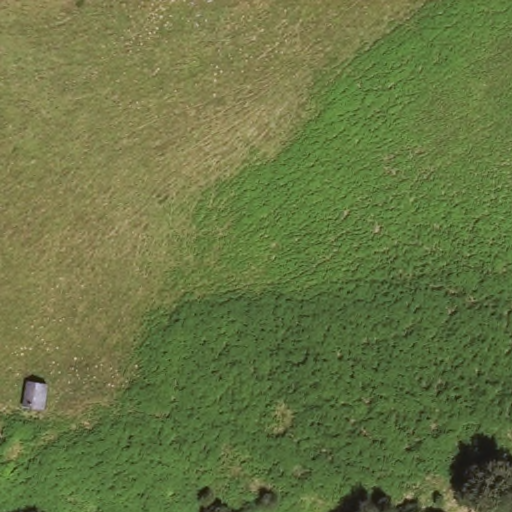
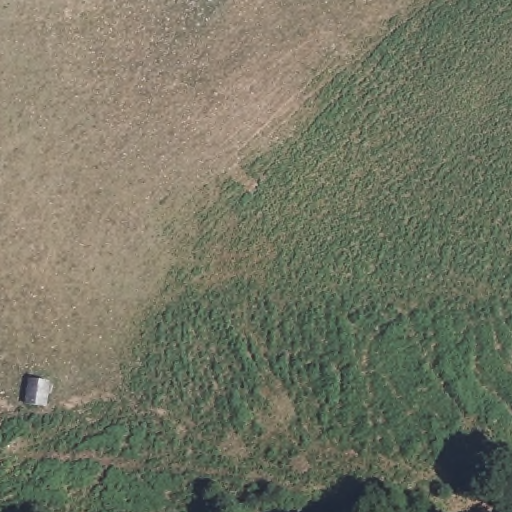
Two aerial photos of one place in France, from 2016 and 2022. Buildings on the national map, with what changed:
unchanged [(23,406),(27,380),(49,383),(47,409),(23,406)]

